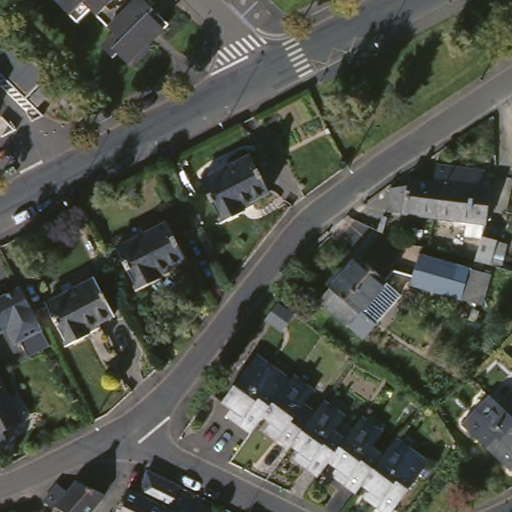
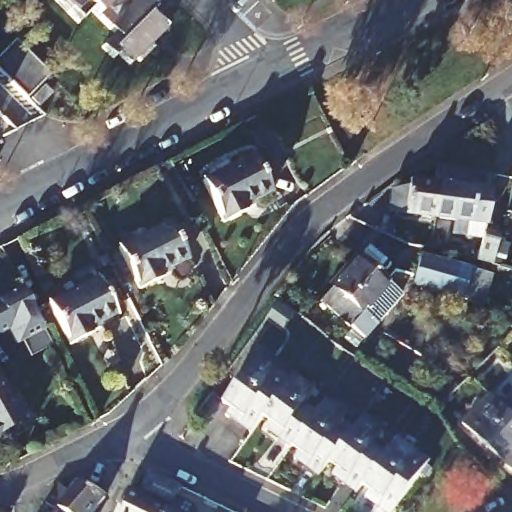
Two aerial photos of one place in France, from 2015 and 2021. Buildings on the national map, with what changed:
unchanged [(169,27),(129,67),(118,56),(114,60),(102,49),(114,37),(89,14),(78,25),(53,0),(143,0),(169,27)]
unchanged [(57,77),(31,104),(0,72),(0,56),(19,39),(57,77)]
unchanged [(204,181),(254,155),(273,191),(245,206),(248,212),(227,223),(204,181)]
unchanged [(494,187),(503,189),(494,232),(512,236),(512,257),(511,262),(441,248),(446,216),(411,209),(418,176),(447,181),(449,157),(497,163),(494,187)]
unchanged [(126,246),(174,221),(194,257),(167,271),(170,277),(149,288),(126,246)]
unchanged [(328,292),(332,287),(368,247),(398,273),(363,314),(359,319),(328,292)]
unchanged [(499,272),(491,303),(422,287),(431,255),(499,272)]
unchanged [(55,298),(104,273),(124,308),(98,324),(100,328),(79,341),(55,298)]
unchanged [(263,430),(234,410),(242,398),(235,393),(266,352),(301,377),(280,406),(263,430)]
unchanged [(16,428),(22,437),(10,446),(0,448),(0,355),(22,391),(38,414),(29,420),(16,428)]
unchanged [(306,439),(279,420),(286,410),(280,406),(301,377),(307,368),(330,385),(322,397),(332,404),(309,436),(306,439)]
unchanged [(464,415),(493,384),(507,397),(512,402),(512,448),(509,445),(503,452),(464,415)]
unchanged [(512,392),(512,402),(507,397),(512,392)]
unchanged [(334,467),(309,450),(315,440),(309,436),(332,404),(338,396),(360,412),(346,431),(357,438),(343,457),(334,467)]
unchanged [(343,469),(349,461),(343,457),(357,438),(374,415),(395,430),(383,447),(394,455),(370,488),(343,469)]
unchanged [(394,455),(408,436),(441,460),(410,500),(403,494),(395,506),(370,488),(394,455)]
unchanged [(134,483),(146,490),(156,468),(156,467),(157,467),(185,481),(188,482),(183,492),(198,498),(201,505),(204,511),(203,512),(120,512),(128,496),(134,483)]
unchanged [(94,479),(123,493),(108,512),(76,512),(70,508),(61,501),(63,497),(72,481),(85,490),(94,479)]
unchanged [(227,512),(224,512),(224,511),(227,512)]

